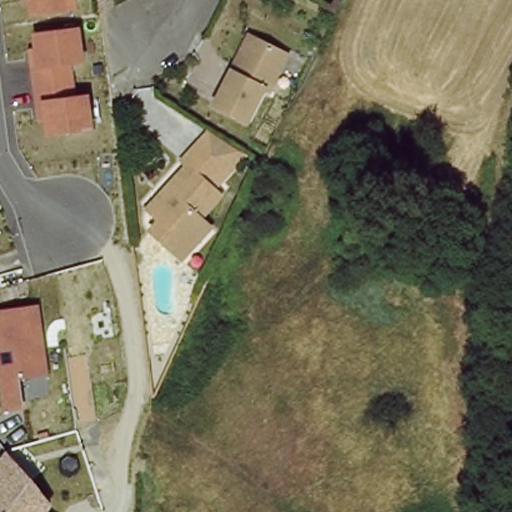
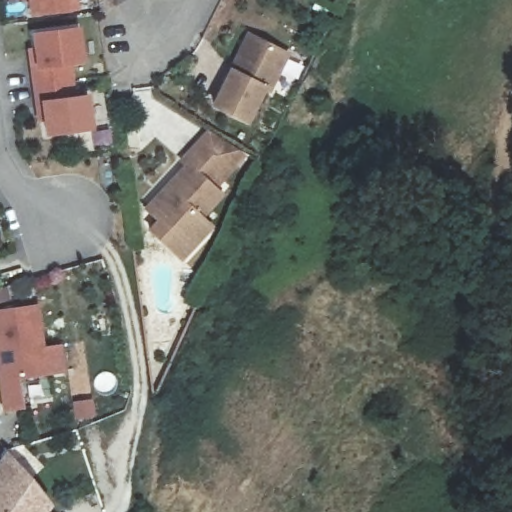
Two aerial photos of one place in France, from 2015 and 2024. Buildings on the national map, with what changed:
unchanged [(29,16),(26,1),(21,1),(21,0),(76,0),(77,8),(29,16)]
unchanged [(100,19),(98,0),(112,0),(113,9),(100,19)]
unchanged [(45,136),(43,122),(37,123),(27,51),(35,50),(32,34),(80,27),(84,62),(72,63),(77,96),(89,94),(92,129),(45,136)]
unchanged [(269,88),(262,84),(245,120),(212,103),(228,69),(233,71),(251,35),(267,43),(268,43),(285,52),(271,83),(269,88)]
unchanged [(174,179),(194,156),(189,152),(205,133),(230,154),(214,175),(226,187),(209,209),(212,212),(194,235),(199,239),(189,250),(157,223),(168,211),(163,206),(157,200),(174,179)]
unchanged [(2,413),(0,403),(0,310),(37,304),(48,372),(20,377),(25,409),(2,413)]
unchanged [(36,473),(51,505),(46,512),(0,512),(0,466),(14,449),(36,473)]

